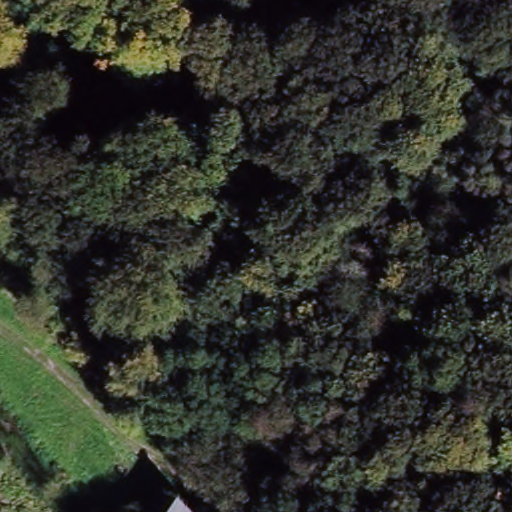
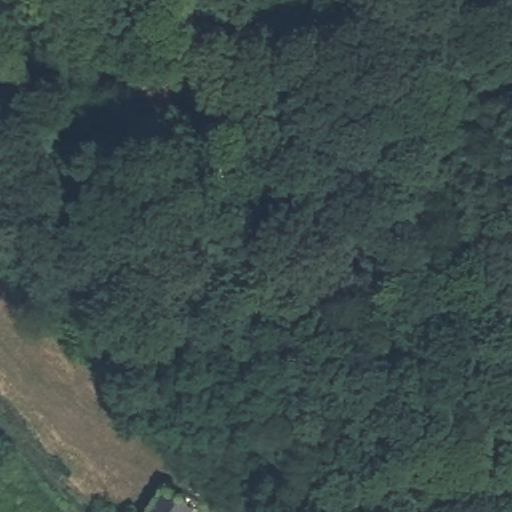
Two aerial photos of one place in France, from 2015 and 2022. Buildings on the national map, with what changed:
unchanged [(274,512),(248,512),(236,497),(247,489),(251,485),(274,512)]
unchanged [(147,512),(163,491),(190,512),(147,512)]

